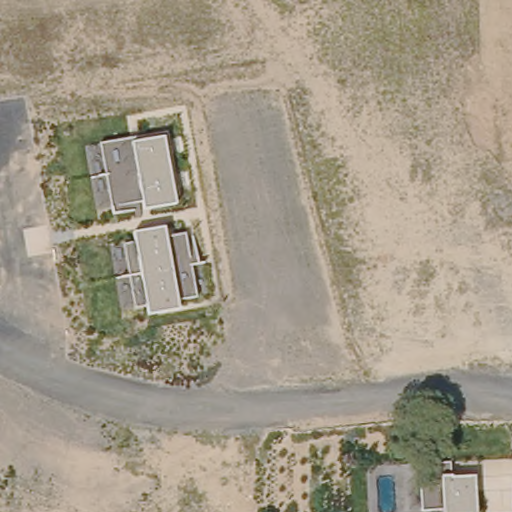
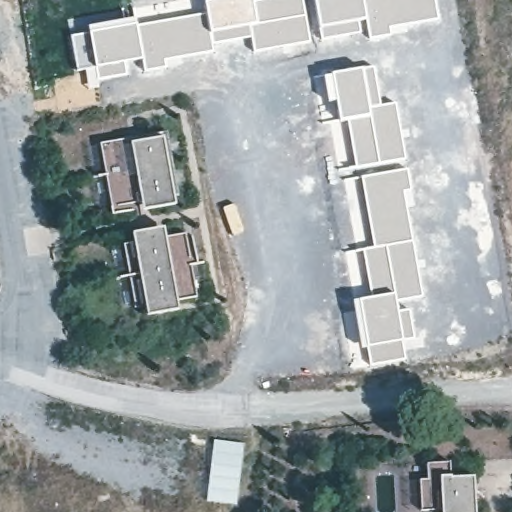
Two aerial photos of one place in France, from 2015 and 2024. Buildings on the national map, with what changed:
new [(71,36),(90,33),(135,25),(206,14),(204,2),(218,0),(252,0),(252,1),(258,0),(302,0),(310,42),(254,52),(251,37),(211,44),(213,52),(164,60),(165,67),(144,72),(142,59),(124,62),(127,75),(97,80),(95,67),(77,70),(71,36)]
new [(319,28),(314,0),(435,0),(438,20),(390,28),(391,36),(370,39),(366,20),(357,21),(359,34),(321,40),(319,28)]
new [(373,65),(381,104),(395,102),(407,164),(366,171),(366,169),(352,170),(351,166),(351,162),(342,122),(337,124),(334,102),(326,102),(321,75),(373,65)]
unchanged [(175,205),(142,211),(141,203),(110,207),(99,144),(137,136),(138,142),(165,137),(175,205)]
new [(369,296),(361,259),(359,249),(370,246),(366,224),(357,176),(367,173),(366,171),(407,164),(413,206),(408,207),(423,298),(398,302),(399,309),(410,307),(415,338),(403,341),(405,359),(368,366),(365,347),(361,348),(351,300),(369,296)]
unchanged [(166,237),(185,234),(197,297),(177,302),(179,311),(147,316),(145,306),(133,307),(122,244),(133,241),(132,234),(164,227),(166,237)]
unchanged [(474,477),(476,512),(441,512),(441,510),(421,512),(417,465),(450,462),(451,478),(474,477)]

